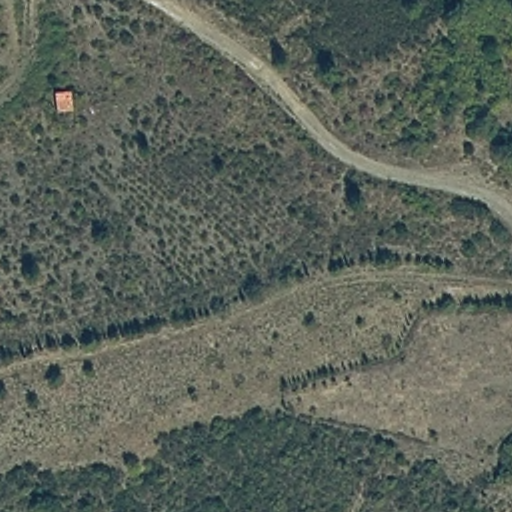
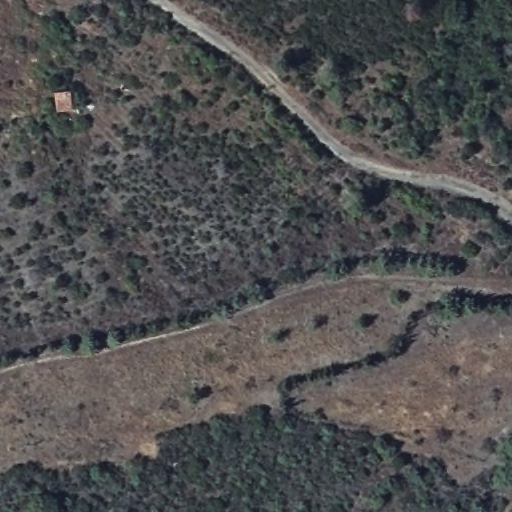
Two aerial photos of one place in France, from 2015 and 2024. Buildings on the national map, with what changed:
unchanged [(73,109),(57,111),(51,92),(68,91),(73,109)]

